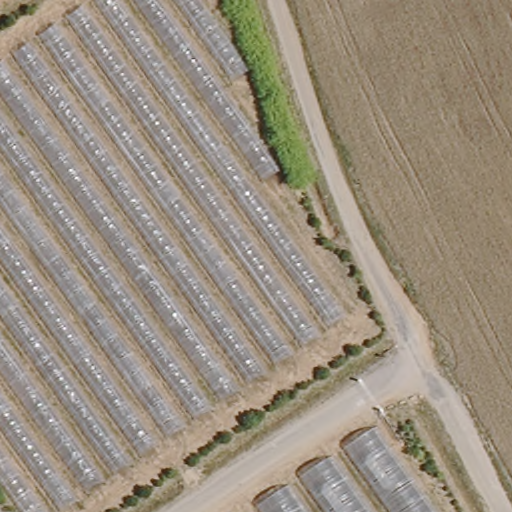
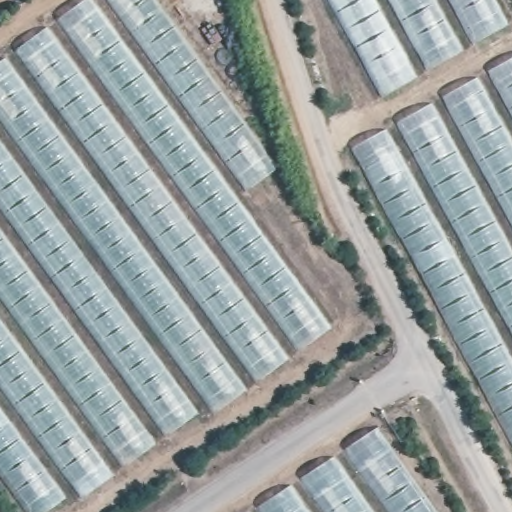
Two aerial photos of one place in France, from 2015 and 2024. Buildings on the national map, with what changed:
unchanged [(0,61),(87,0),(162,0),(226,91),(283,171),(256,190),(349,320),(64,512),(20,512),(0,484),(0,61)]
new [(383,95),(329,0),(512,0),(512,21),(383,95)]
new [(349,150),(512,57),(512,444),(349,150)]
unchanged [(444,512),(239,512),(379,418),(444,512)]

